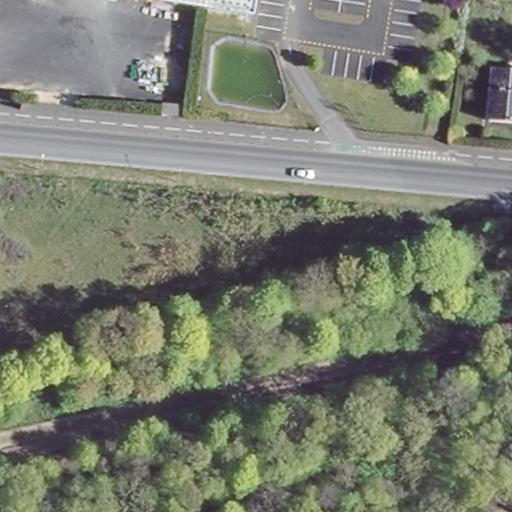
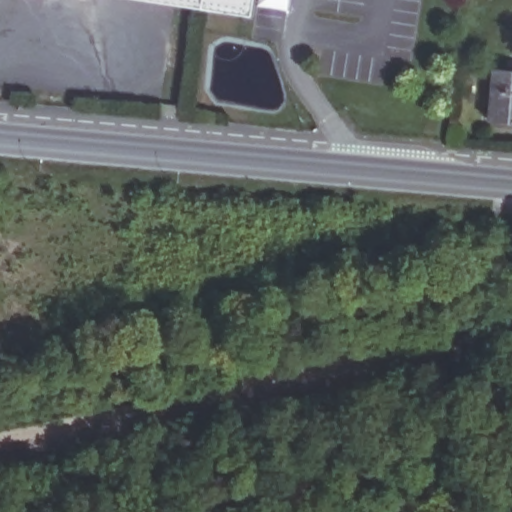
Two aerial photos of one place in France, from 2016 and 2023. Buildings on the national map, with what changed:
unchanged [(137,0),(255,0),(253,18),(137,0)]
unchanged [(497,64),(512,66),(512,125),(491,123),(497,64)]

